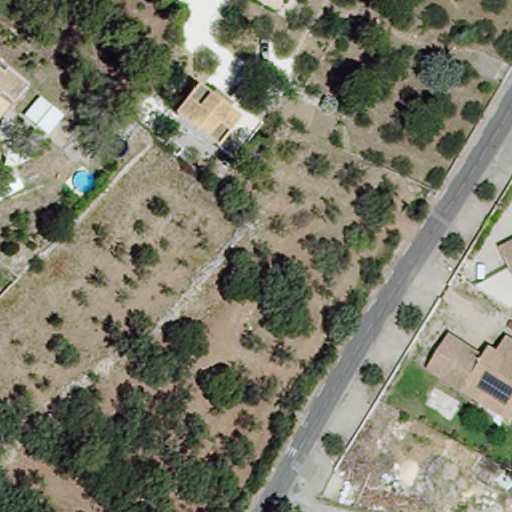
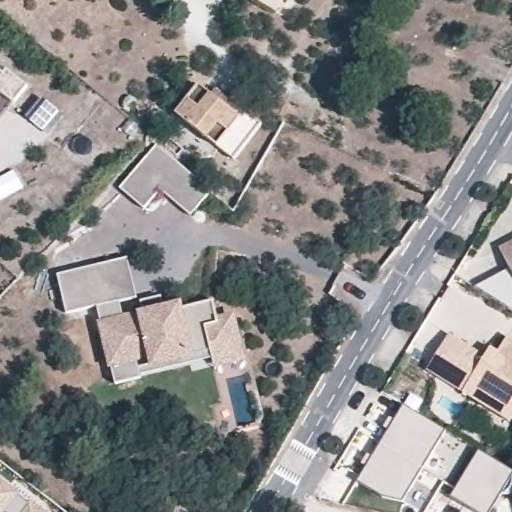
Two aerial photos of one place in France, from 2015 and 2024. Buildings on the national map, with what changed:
unchanged [(14,105),(0,96),(0,60),(29,87),(14,105)]
unchanged [(236,109),(223,131),(189,109),(201,87),(236,109)]
new [(209,195),(190,217),(158,192),(143,212),(118,192),(157,147),(209,195)]
unchanged [(512,244),(512,270),(499,251),(512,244)]
new [(135,296),(118,300),(123,319),(141,316),(181,306),(213,300),(218,320),(234,315),(246,366),(214,372),(212,360),(191,363),(149,370),(148,358),(135,362),(141,382),(114,387),(95,310),(66,317),(58,276),(124,260),(135,296)]
new [(512,270),(512,310),(477,288),(512,270)]
unchanged [(507,354),(512,346),(512,431),(509,437),(419,383),(456,327),(473,337),(489,347),(492,342),(507,354)]
new [(403,501),(381,497),(357,482),(404,405),(445,431),(403,501)]
new [(477,450),(512,471),(512,476),(490,512),(474,512),(449,497),(477,450)]
new [(4,510),(3,512),(0,512),(0,476),(46,512),(7,512),(4,510)]

